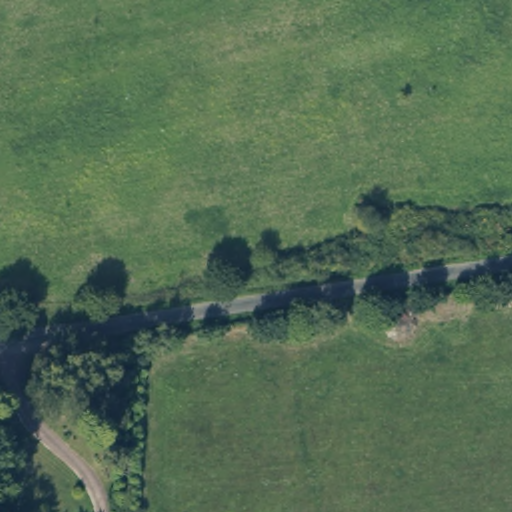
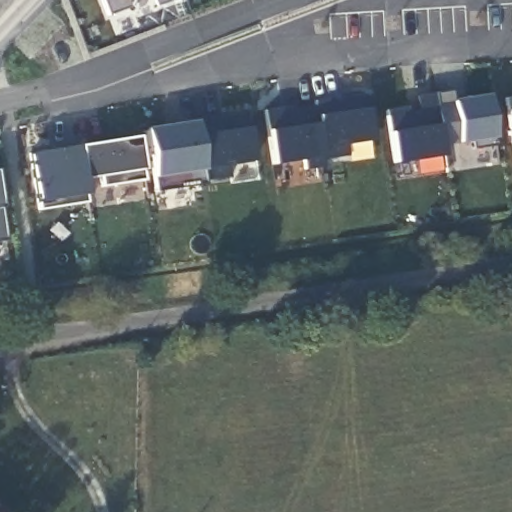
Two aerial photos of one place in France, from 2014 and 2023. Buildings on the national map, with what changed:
new [(128,9),(107,16),(101,0),(125,0),(128,9)]
new [(155,7),(152,0),(172,0),(155,7)]
new [(408,107),(408,112),(420,111),(418,96),(452,91),(453,100),(487,96),(493,137),(495,146),(476,149),(474,141),(459,144),(442,147),(443,155),(393,162),(390,131),(387,110),(408,107)]
new [(365,96),(364,110),(370,141),(343,145),(346,156),(321,159),(322,169),(297,170),(296,163),(270,166),(267,130),(263,109),(365,96)]
new [(512,96),(512,142),(507,109),(506,97),(512,96)]
new [(202,168),(197,135),(194,119),(245,112),(249,125),(252,162),(225,165),(226,176),(203,180),(202,168)]
new [(36,201),(29,153),(135,137),(140,171),(141,180),(97,187),(95,175),(84,177),(86,196),(87,204),(40,210),(36,201)]
new [(0,242),(0,215),(5,241),(0,242)]

